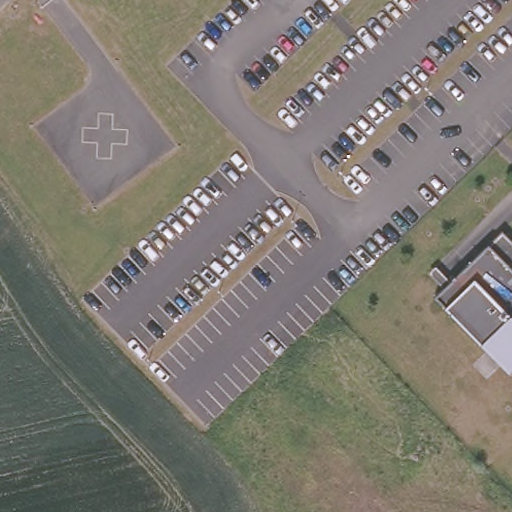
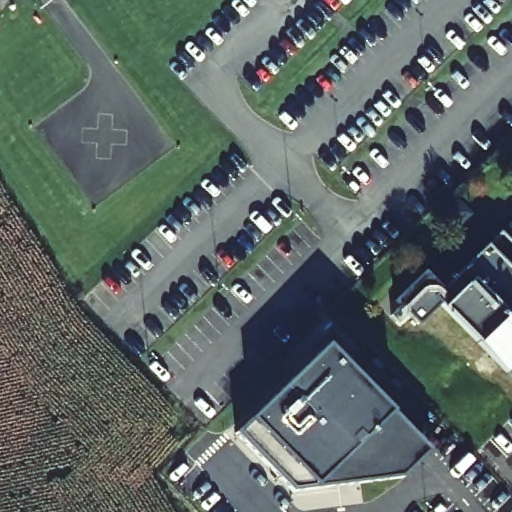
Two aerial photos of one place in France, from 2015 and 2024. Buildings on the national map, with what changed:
unchanged [(428,273),(435,267),(449,281),(501,230),(512,241),(512,369),(508,373),(505,369),(433,297),(442,287),(428,273)]
new [(318,354),(326,363),(335,354),(420,441),(405,455),(414,465),(401,478),(347,485),(346,475),(326,477),(327,487),(291,492),(235,434),(318,354)]

